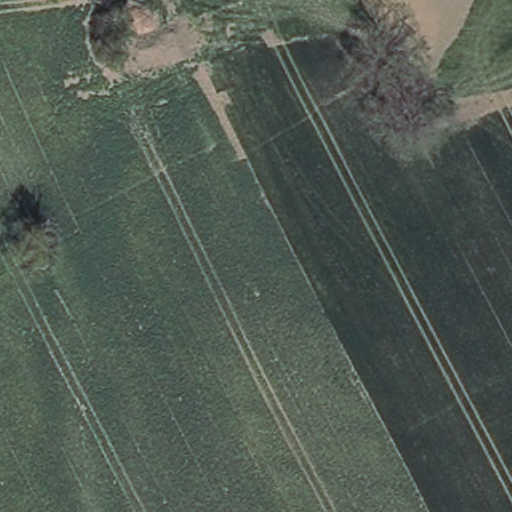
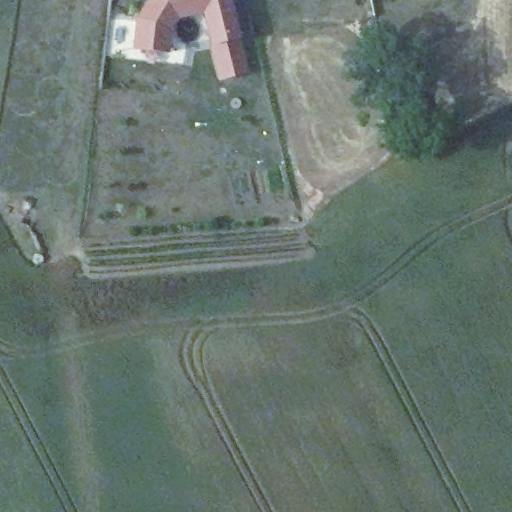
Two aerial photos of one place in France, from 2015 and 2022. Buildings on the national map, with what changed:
new [(240,39),(248,76),(219,82),(209,48),(201,15),(178,21),(171,33),(168,55),(132,52),(135,21),(147,0),(230,0),(240,39)]

